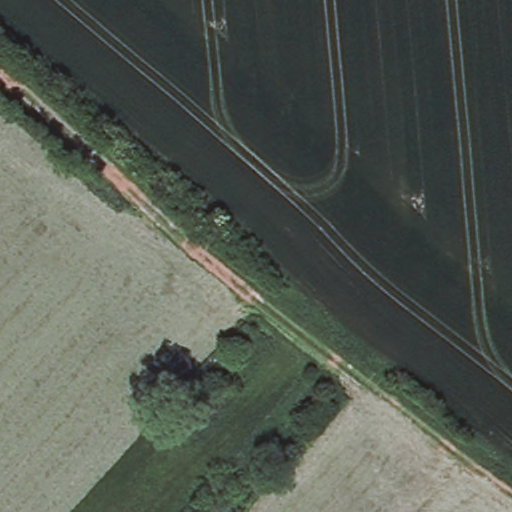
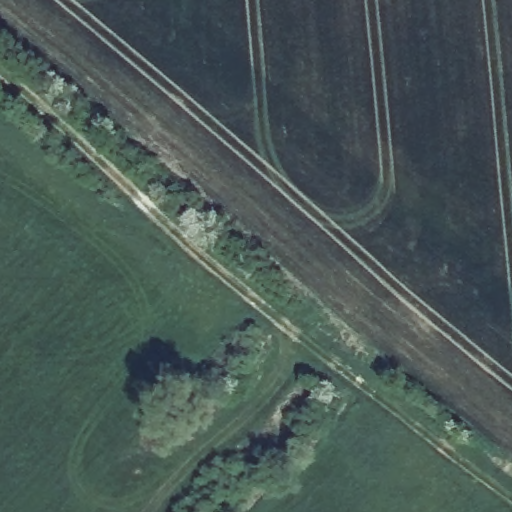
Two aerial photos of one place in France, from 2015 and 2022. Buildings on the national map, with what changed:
unchanged [(173,404),(185,414),(177,424),(165,414),(173,404)]

